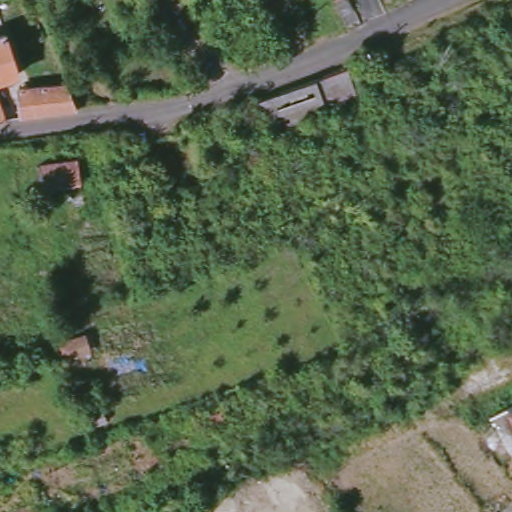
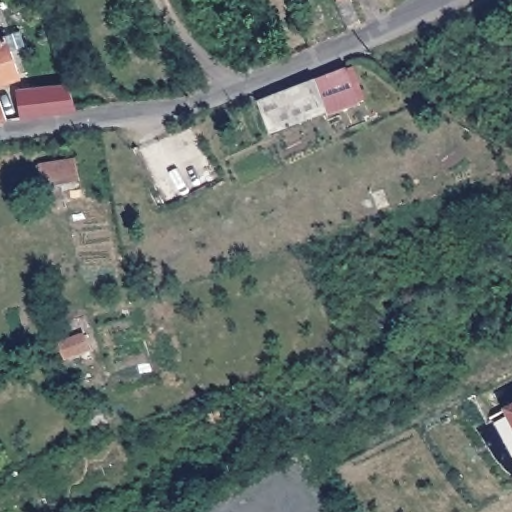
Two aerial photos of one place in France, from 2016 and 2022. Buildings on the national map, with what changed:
unchanged [(338,4),(336,0),(345,0),(338,4)]
unchanged [(20,68),(0,76),(0,32),(5,30),(20,68)]
unchanged [(352,71),(365,103),(276,136),(263,105),(352,71)]
unchanged [(67,82),(77,109),(23,117),(19,87),(67,82)]
unchanged [(0,119),(0,96),(4,118),(0,119)]
unchanged [(42,191),(40,166),(76,162),(79,186),(42,191)]
unchanged [(512,407),(512,411),(510,408),(512,407)]

